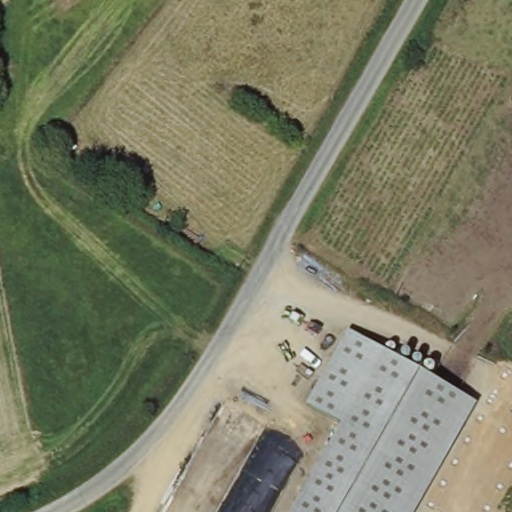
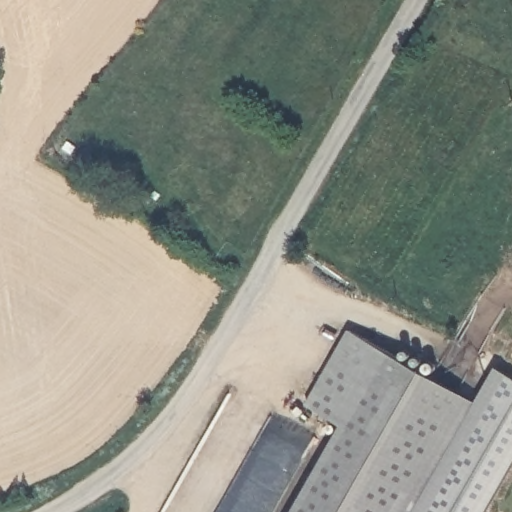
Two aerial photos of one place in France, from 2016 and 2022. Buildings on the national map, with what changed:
unchanged [(479,402),(418,512),(295,512),(345,423),(310,403),(349,329),(384,348),(479,402)]
new [(479,402),(498,369),(512,377),(512,468),(488,512),(418,512),(479,402)]

